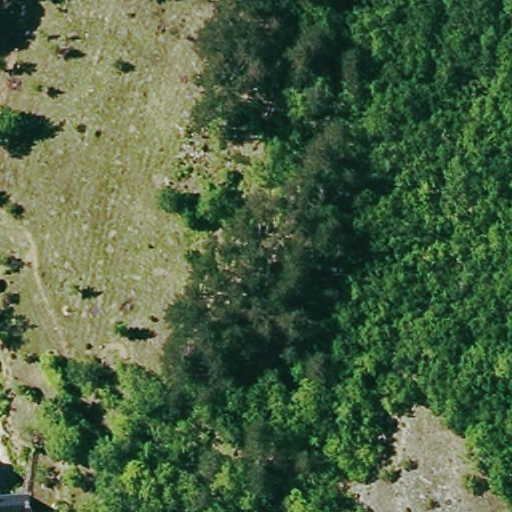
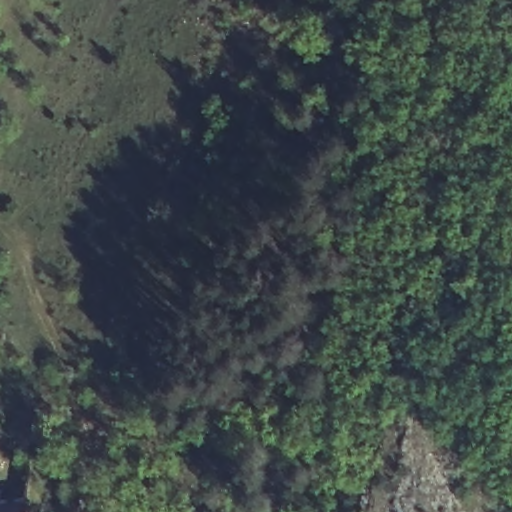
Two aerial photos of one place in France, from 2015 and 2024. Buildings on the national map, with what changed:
unchanged [(30,501),(29,512),(0,512),(0,501),(30,501)]

